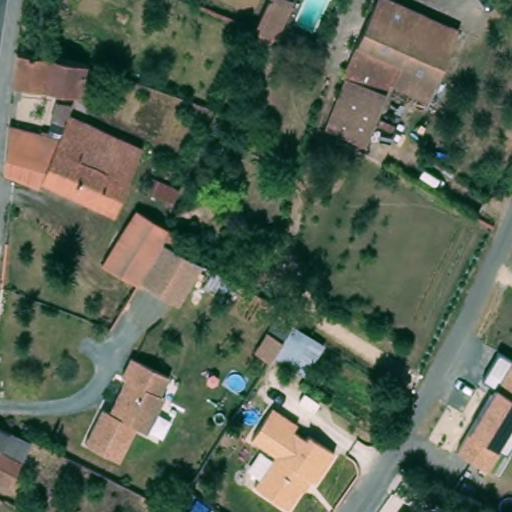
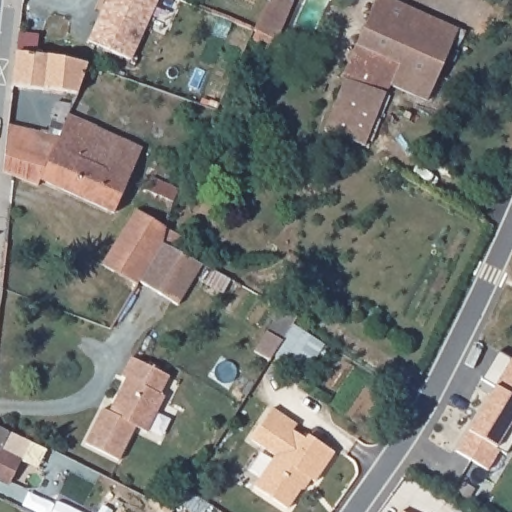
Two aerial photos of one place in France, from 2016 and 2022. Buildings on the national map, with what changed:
new [(110,0),(160,0),(133,60),(91,41),(110,0)]
unchanged [(271,37),(250,28),(263,0),(288,0),(271,37)]
unchanged [(349,80),(343,78),(378,0),(389,0),(421,12),(390,82),(378,110),(361,146),(333,133),(327,130),(349,80)]
unchanged [(460,29),(428,99),(390,82),(421,12),(460,29)]
unchanged [(79,96),(15,89),(19,53),(52,56),(87,65),(79,96)]
unchanged [(115,215),(41,181),(67,126),(71,117),(120,140),(142,150),(115,215)]
unchanged [(38,187),(15,177),(5,172),(10,126),(51,131),(55,118),(67,126),(41,181),(38,187)]
unchanged [(173,203),(146,193),(155,175),(177,189),(179,190),(173,203)]
unchanged [(150,285),(133,275),(97,255),(133,201),(162,219),(158,234),(175,242),(150,285)]
unchanged [(284,313),(295,321),(291,327),(281,342),(267,333),(281,311),(284,313)]
unchanged [(495,385),(483,378),(498,354),(512,362),(512,443),(507,451),(500,448),(486,470),(458,450),(495,385)]
unchanged [(105,412),(112,415),(129,382),(124,380),(133,360),(172,379),(163,397),(167,399),(150,435),(138,430),(122,464),(88,447),(105,412)]
unchanged [(309,434),(336,452),(316,484),(305,476),(299,485),(303,489),(289,509),(255,487),(275,455),(254,441),(273,410),(309,434)]
unchanged [(37,443),(26,462),(13,484),(3,478),(0,476),(0,427),(2,422),(37,443)]

